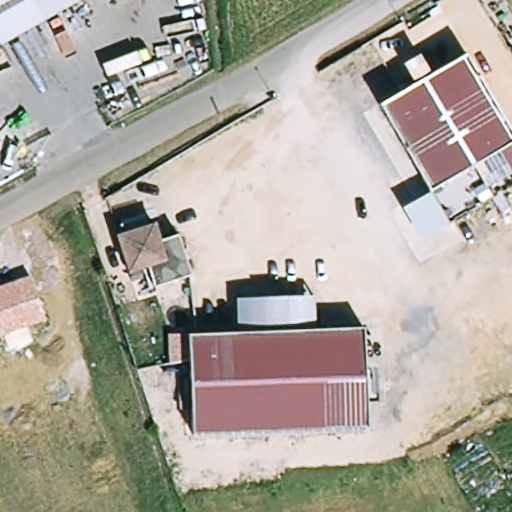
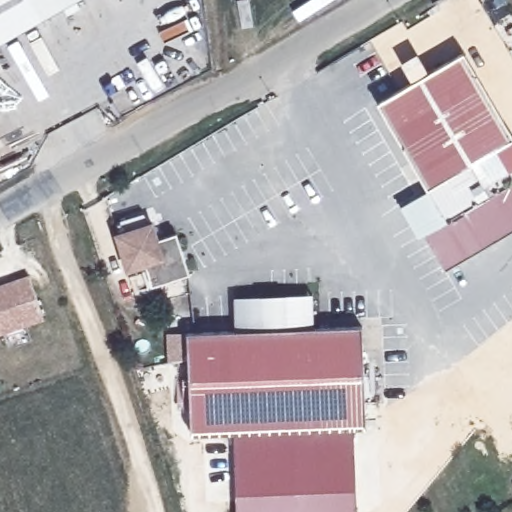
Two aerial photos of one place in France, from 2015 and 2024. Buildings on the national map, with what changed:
unchanged [(20,36),(0,47),(0,0),(82,0),(20,36)]
unchanged [(380,105),(413,85),(403,66),(423,53),(433,73),(469,53),(512,130),(512,189),(420,243),(403,206),(430,192),(380,105)]
new [(446,268),(429,238),(512,189),(512,229),(446,268)]
unchanged [(182,237),(195,278),(158,290),(151,270),(133,275),(122,239),(127,226),(146,220),(158,228),(163,244),(182,237)]
unchanged [(46,320),(0,335),(0,285),(29,275),(46,320)]
new [(236,331),(234,298),(313,294),(314,329),(236,331)]
unchanged [(366,428),(191,432),(189,332),(364,328),(366,428)]
unchanged [(169,364),(167,333),(189,332),(189,360),(169,364)]
new [(357,512),(237,512),(233,431),(353,428),(357,512)]

